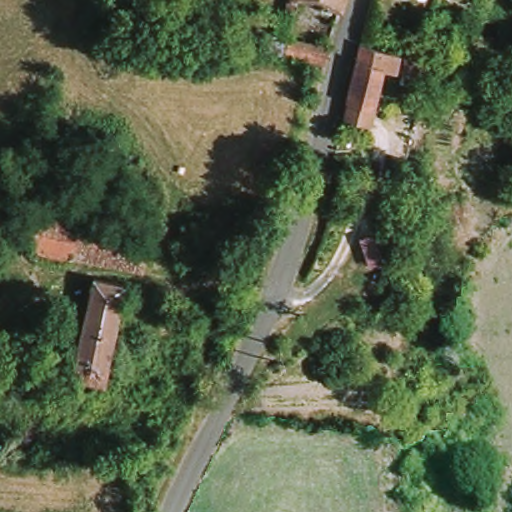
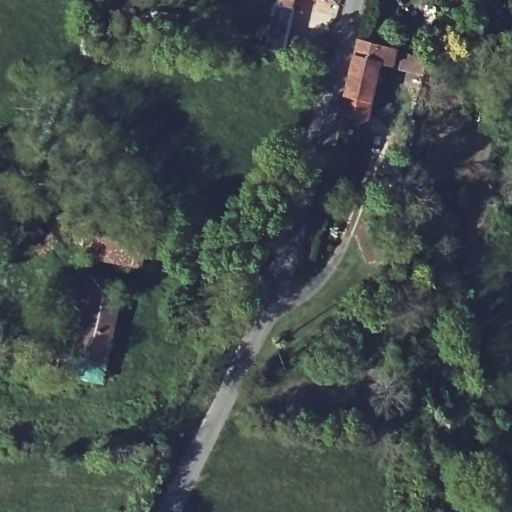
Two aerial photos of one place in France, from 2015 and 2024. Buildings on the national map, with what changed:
unchanged [(321,0),(351,0),(350,6),(321,0)]
unchanged [(288,8),(285,29),(262,26),(265,5),(288,8)]
unchanged [(281,50),(284,34),(330,44),(326,59),(308,55),(281,50)]
unchanged [(373,124),(349,119),(365,41),(403,46),(401,63),(386,60),(373,124)]
unchanged [(428,45),(426,70),(411,69),(415,44),(428,45)]
unchanged [(47,209),(155,232),(148,268),(39,245),(47,209)]
unchanged [(0,356),(0,330),(84,348),(100,277),(132,284),(109,379),(0,356)]

